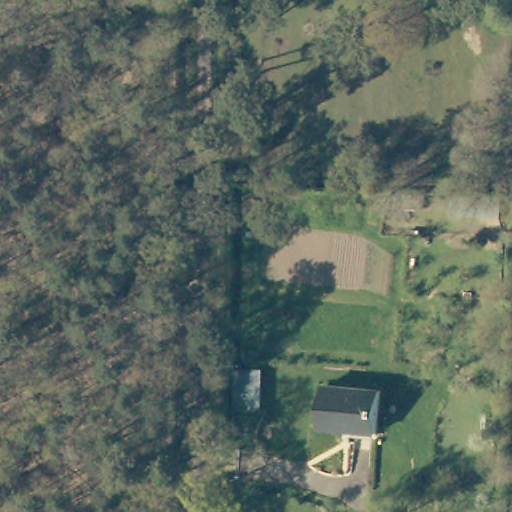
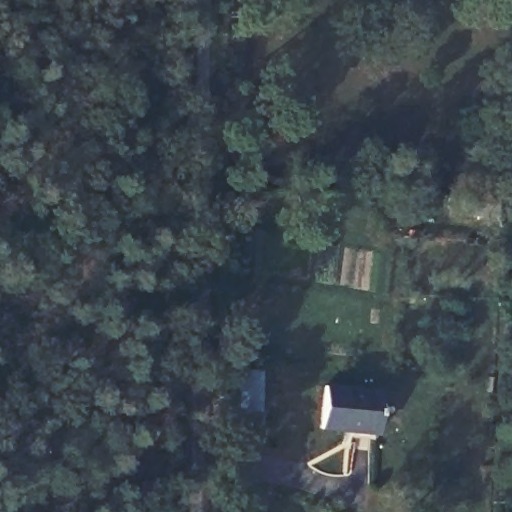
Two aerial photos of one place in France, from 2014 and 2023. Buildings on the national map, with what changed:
unchanged [(237,413),(237,364),(261,365),(259,413),(237,413)]
unchanged [(378,393),(374,433),(321,428),(325,387),(378,393)]

